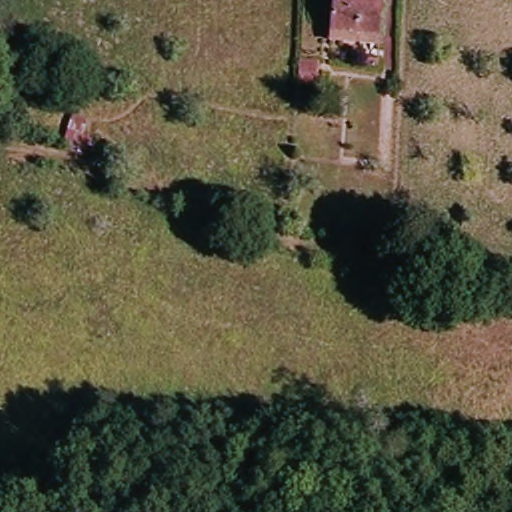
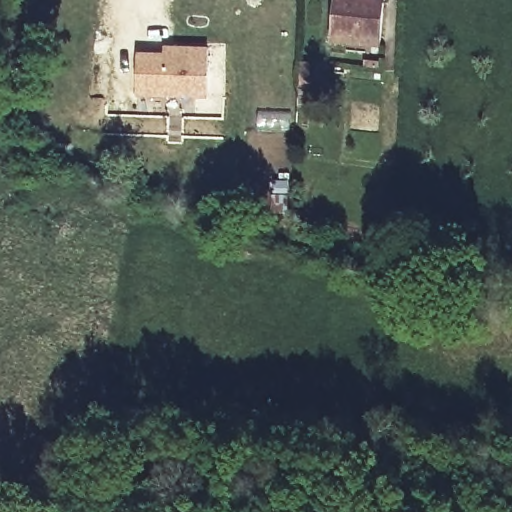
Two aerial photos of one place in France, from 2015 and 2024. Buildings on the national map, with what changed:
unchanged [(377,7),(377,46),(334,45),(334,6),(377,7)]
new [(173,56),(164,55),(165,47),(173,49),(209,50),(207,98),(135,94),(137,54),(173,56)]

